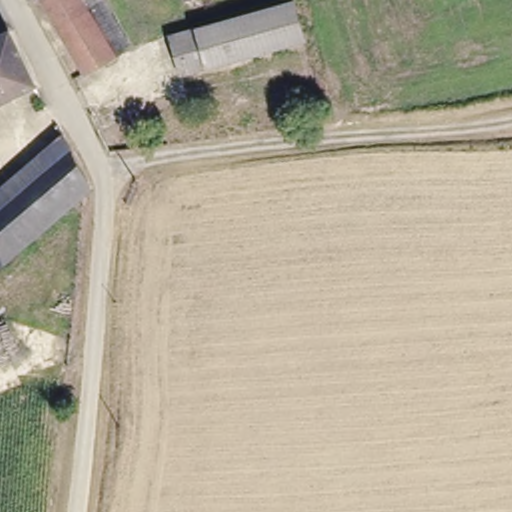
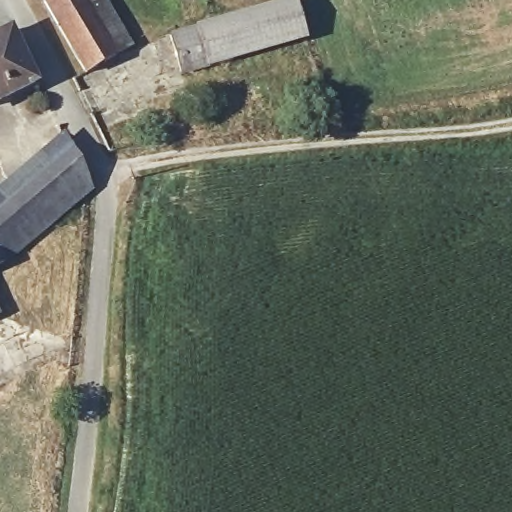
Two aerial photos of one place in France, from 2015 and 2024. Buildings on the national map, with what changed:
unchanged [(42,0),(82,0),(112,56),(82,71),(42,0)]
unchanged [(82,0),(103,0),(129,46),(112,56),(82,0)]
unchanged [(195,27),(291,0),(293,0),(304,39),(207,67),(195,27)]
unchanged [(179,73),(168,35),(195,27),(207,67),(179,73)]
unchanged [(0,99),(0,34),(15,28),(34,86),(0,99)]
unchanged [(4,262),(0,263),(0,212),(56,167),(45,151),(62,139),(89,183),(81,199),(4,262)]

